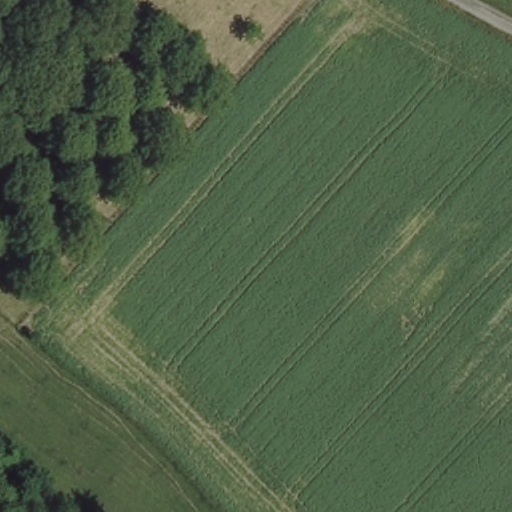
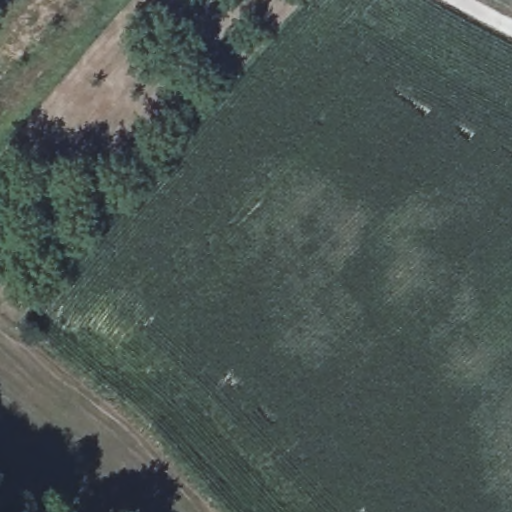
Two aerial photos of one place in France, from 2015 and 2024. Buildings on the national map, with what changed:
[]

